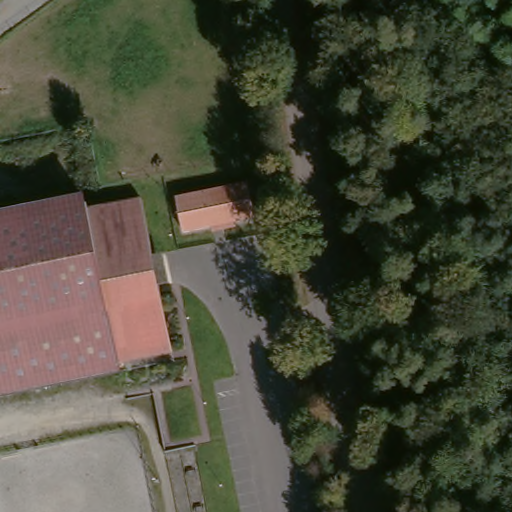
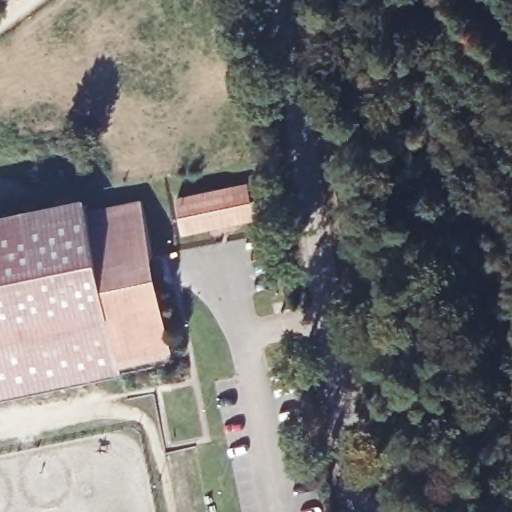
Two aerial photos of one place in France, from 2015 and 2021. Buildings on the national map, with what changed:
unchanged [(175,201),(251,184),(258,219),(183,234),(175,201)]
unchanged [(150,257),(160,254),(167,285),(156,287),(170,353),(115,364),(86,211),(139,200),(150,257)]
unchanged [(115,364),(0,388),(0,222),(85,204),(86,211),(115,364)]

